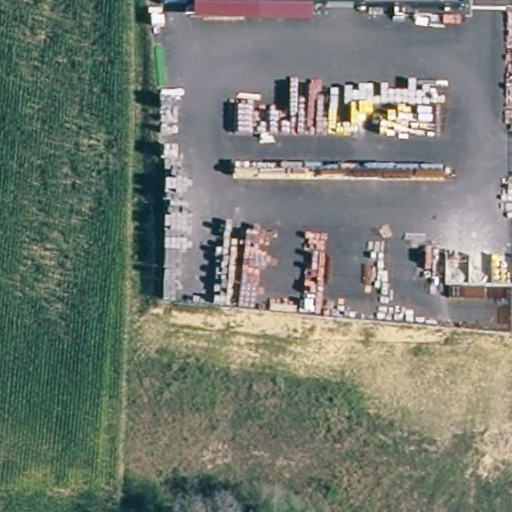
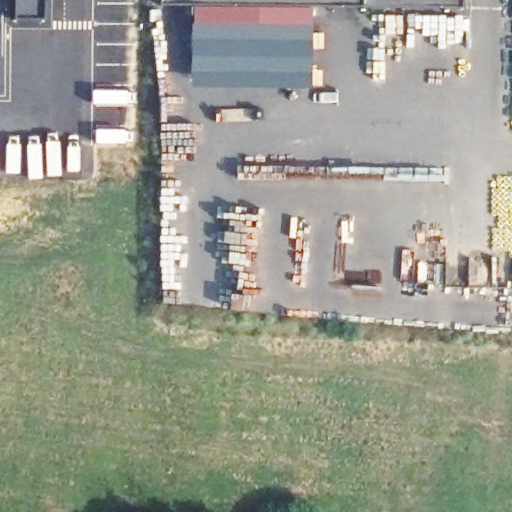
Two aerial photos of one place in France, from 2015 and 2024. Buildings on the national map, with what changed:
new [(40,18),(12,19),(12,0),(40,0),(40,18)]
unchanged [(462,8),(311,7),(311,24),(193,21),(194,5),(161,5),(161,0),(462,0),(462,8)]
new [(311,24),(313,87),(193,87),(193,21),(311,24)]

